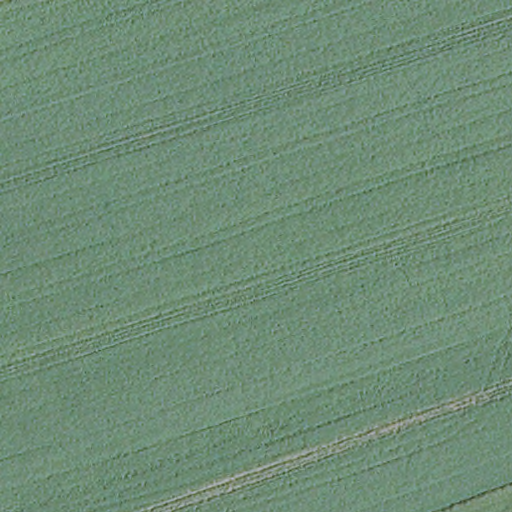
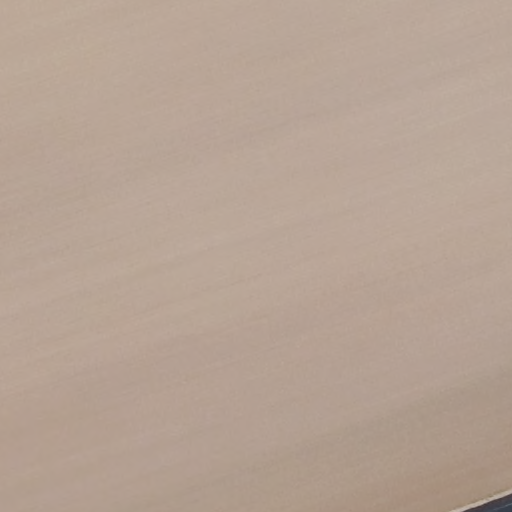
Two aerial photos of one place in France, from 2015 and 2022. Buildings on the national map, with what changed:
[]

